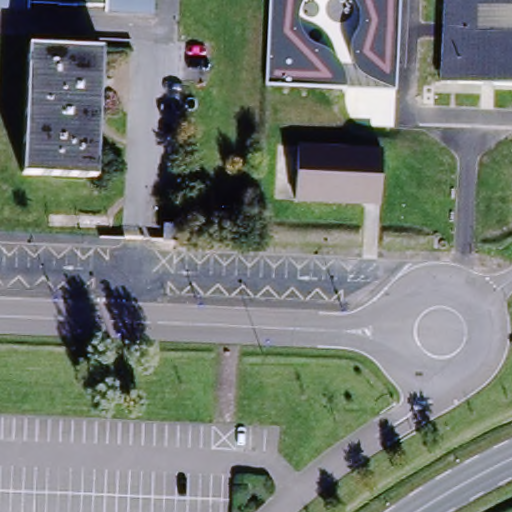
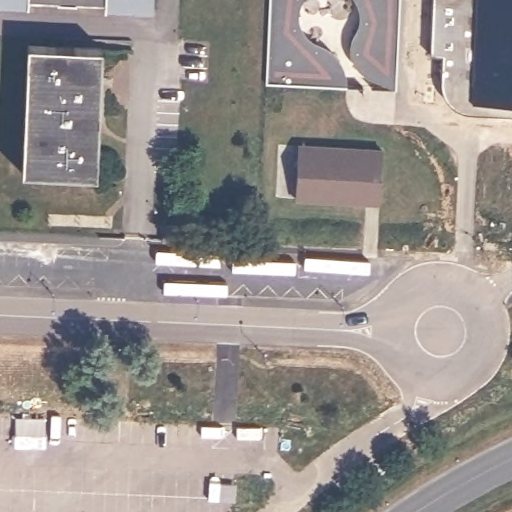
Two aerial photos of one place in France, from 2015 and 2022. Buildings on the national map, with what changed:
unchanged [(0,0),(27,0),(27,1),(0,0)]
unchanged [(105,6),(105,4),(37,0),(152,0),(152,9),(105,6)]
unchanged [(270,0),(303,0),(299,5),(298,10),(298,16),(301,26),(304,32),(307,35),(314,42),(318,45),(327,50),(336,56),(342,65),(345,77),(345,87),(266,83),(270,0)]
unchanged [(368,76),(357,65),(351,51),(351,45),(354,35),(357,29),(360,18),(358,5),(355,0),(400,0),(397,90),(368,76)]
unchanged [(441,0),(512,0),(512,87),(436,84),(441,0)]
unchanged [(93,172),(23,169),(30,45),(100,50),(93,172)]
unchanged [(381,150),(379,205),(297,201),(298,146),(381,150)]
unchanged [(167,228),(182,229),(181,244),(177,244),(166,243),(167,228)]

